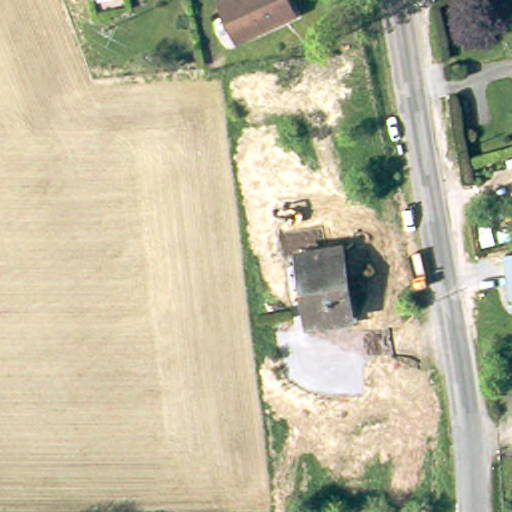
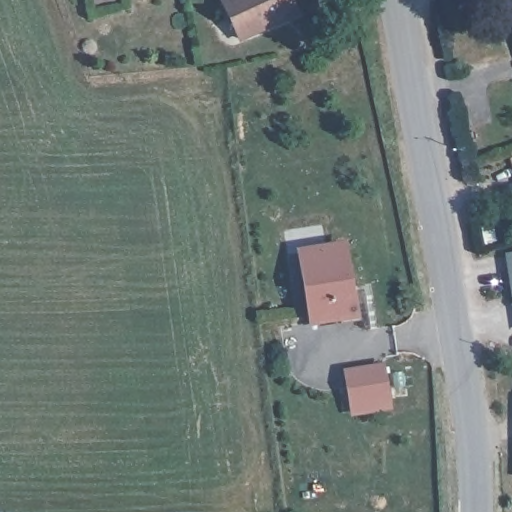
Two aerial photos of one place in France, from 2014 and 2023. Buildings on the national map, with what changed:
unchanged [(225,0),(226,0),(296,0),(302,11),(244,38),(225,0)]
unchanged [(306,259),(346,252),(359,321),(319,327),(306,259)]
unchanged [(511,296),(506,253),(512,252),(512,297),(511,296)]
unchanged [(491,349),(498,334),(512,343),(512,361),(506,357),(491,349)]
new [(392,408),(352,416),(344,370),(384,363),(392,408)]

